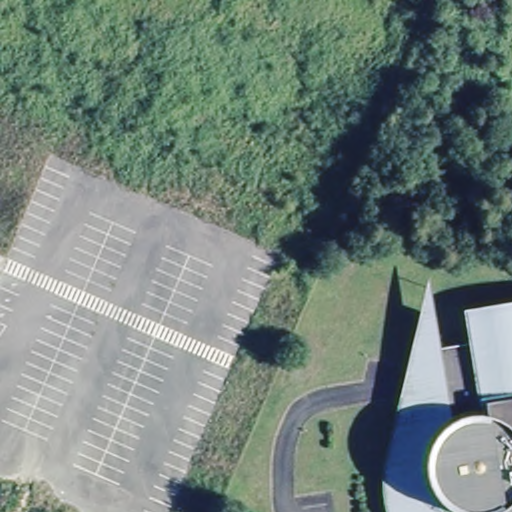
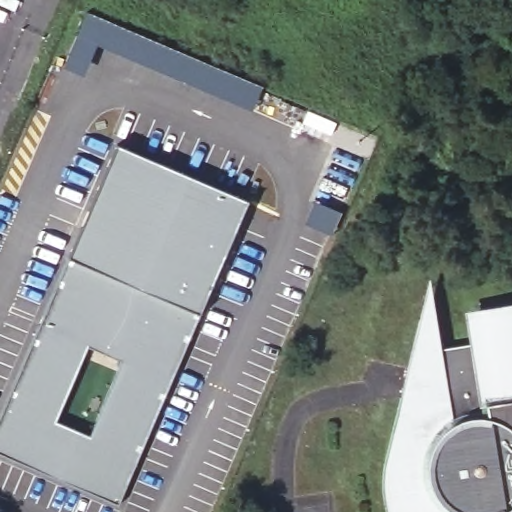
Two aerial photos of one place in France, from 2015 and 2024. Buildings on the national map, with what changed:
new [(261,89),(252,110),(96,44),(92,55),(73,47),(86,15),(110,26),(111,22),(165,45),(164,49),(261,89)]
new [(246,203),(116,506),(0,456),(0,417),(115,147),(246,203)]
unchanged [(385,512),(383,506),(382,495),(381,484),(382,473),(384,461),(421,318),(431,278),(437,316),(442,347),(477,342),(473,315),(512,309),(512,512),(385,512)]

